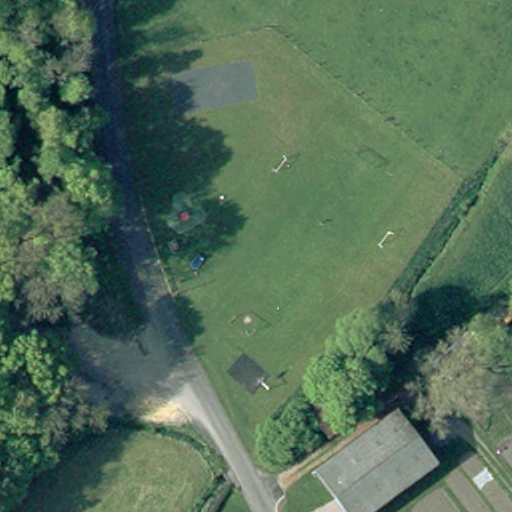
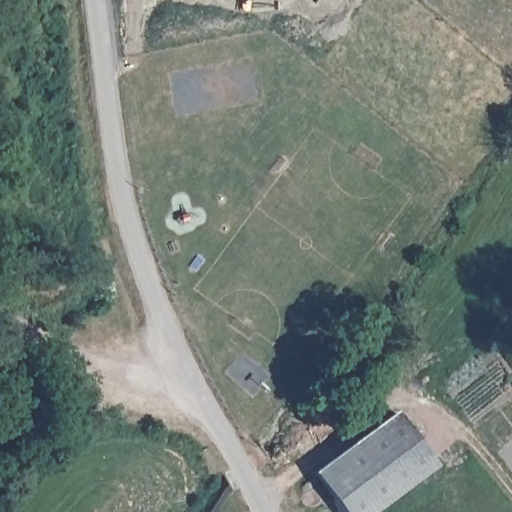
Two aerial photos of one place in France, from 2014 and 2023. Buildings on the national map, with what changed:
unchanged [(317,434),(305,422),(295,411),(317,390),(328,401),(340,414),(317,434)]
unchanged [(390,412),(429,464),(367,512),(341,512),(312,471),(390,412)]

